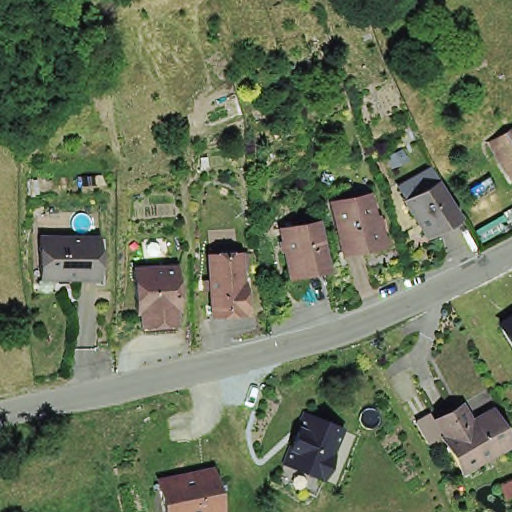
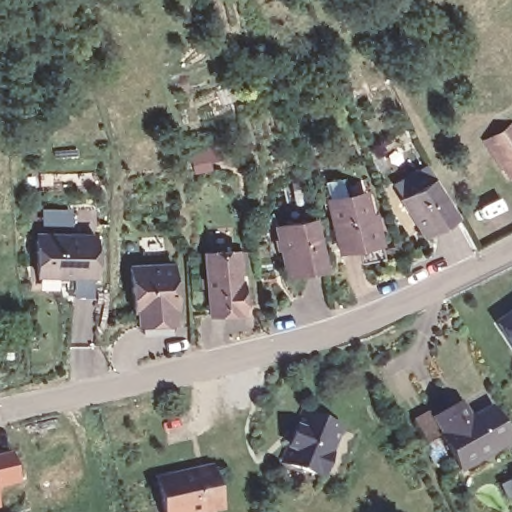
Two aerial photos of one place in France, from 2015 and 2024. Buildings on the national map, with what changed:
unchanged [(512,119),(512,172),(510,173),(485,136),(512,119)]
unchanged [(432,172),(456,209),(422,229),(400,193),(432,172)]
unchanged [(378,241),(340,249),(330,202),(362,195),(367,218),(373,217),(378,241)]
unchanged [(325,263),(291,270),(289,270),(283,243),(280,243),(276,221),(282,219),(315,213),(325,263)]
unchanged [(98,236),(98,275),(42,275),(42,236),(98,236)]
unchanged [(243,312),(208,314),(204,253),(235,251),(237,281),(241,280),(243,312)]
unchanged [(138,303),(133,304),(132,263),(151,262),(173,261),(175,301),(170,302),(171,313),(172,321),(153,323),(140,324),(139,315),(138,303)]
unchanged [(512,342),(497,319),(512,310),(512,342)]
unchanged [(511,441),(462,468),(443,434),(445,432),(437,416),(463,402),(472,418),(492,407),(511,441)]
unchanged [(345,427),(323,479),(279,458),(283,444),(289,446),(298,425),(292,422),(299,406),(345,427)]
new [(17,482),(0,487),(0,453),(10,451),(17,482)]
unchanged [(212,462),(223,511),(221,512),(165,512),(155,477),(212,462)]
unchanged [(501,485),(512,480),(512,494),(507,497),(501,485)]

